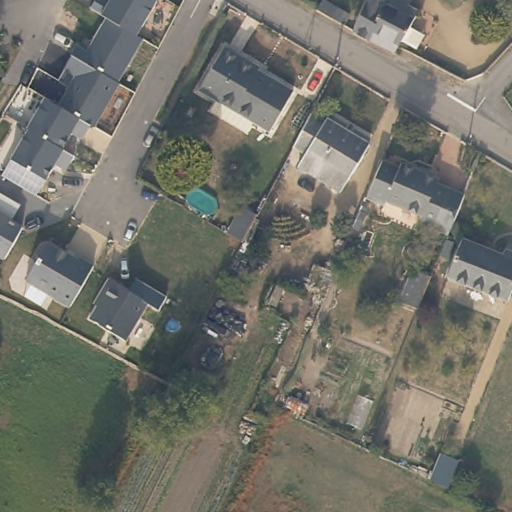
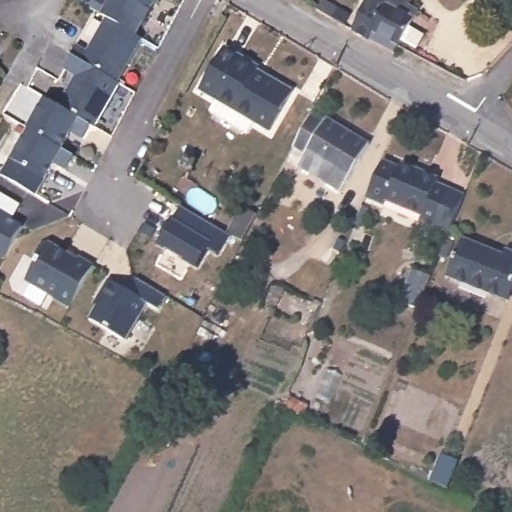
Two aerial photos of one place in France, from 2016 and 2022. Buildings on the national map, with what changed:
unchanged [(91,8),(96,0),(155,0),(137,34),(136,35),(107,17),(102,15),(91,8)]
unchanged [(394,7),(409,15),(388,49),(366,37),(361,45),(343,35),(364,0),(398,0),(394,7)]
unchanged [(76,75),(64,69),(78,44),(89,50),(107,17),(136,35),(144,39),(96,127),(91,125),(79,117),(59,106),(76,75)]
unchanged [(262,66),(260,70),(297,91),(273,131),(258,122),(251,133),(214,111),(220,100),(202,88),(227,45),(262,66)]
unchanged [(82,139),(72,134),(63,150),(75,156),(67,170),(56,164),(47,180),(37,196),(1,175),(11,159),(45,99),(59,106),(91,125),(82,139)]
unchanged [(322,123),(324,120),(368,144),(343,192),(298,168),(304,157),(288,149),(306,115),(322,123)]
unchanged [(449,231),(435,225),(420,219),(422,214),(388,199),(386,204),(366,195),(382,159),(401,166),(403,164),(438,179),(436,182),(450,188),(465,195),(449,231)]
unchanged [(13,220),(23,225),(4,260),(0,258),(0,192),(20,204),(13,220)]
new [(210,249),(199,270),(157,245),(174,219),(182,205),(229,232),(230,234),(219,254),(210,249)]
demolished [(258,215),(244,241),(229,232),(243,206),(258,215)]
new [(244,241),(229,232),(243,206),(258,215),(244,241)]
unchanged [(501,257),(504,252),(512,256),(512,288),(505,304),(445,277),(461,240),(501,257)]
unchanged [(26,282),(37,262),(31,259),(39,244),(49,242),(92,265),(71,307),(26,282)]
unchanged [(430,274),(416,305),(399,297),(412,266),(430,274)]
unchanged [(146,302),(124,339),(88,320),(96,306),(92,304),(107,277),(126,289),(134,277),(164,295),(159,308),(146,302)]
unchanged [(457,449),(446,476),(428,468),(440,441),(457,449)]

